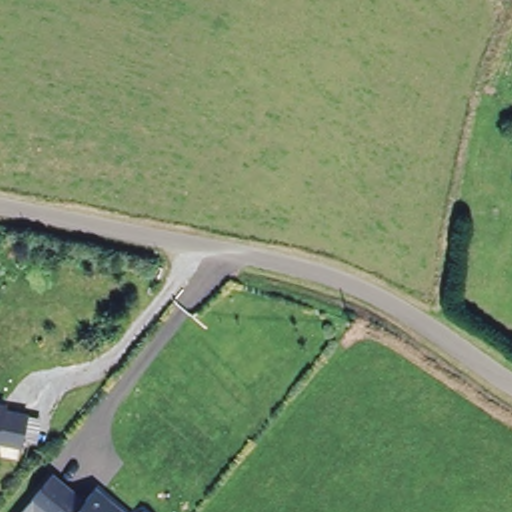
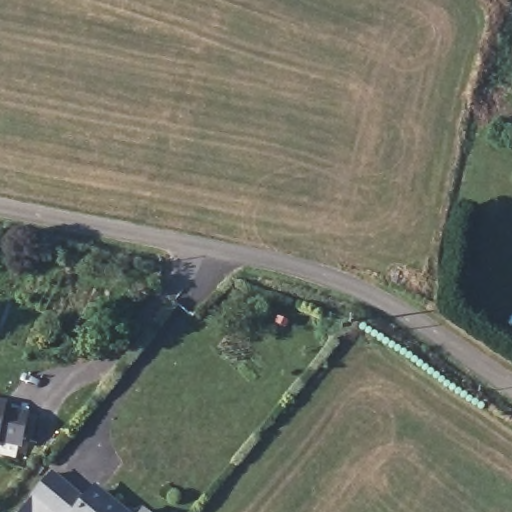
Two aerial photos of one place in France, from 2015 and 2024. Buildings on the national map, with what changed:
unchanged [(30,433),(29,442),(5,437),(4,442),(0,442),(0,399),(14,402),(13,407),(34,412),(34,415),(49,417),(45,436),(30,433)]
unchanged [(36,507),(33,512),(20,512),(35,493),(56,468),(88,495),(95,487),(113,502),(124,501),(136,512),(42,512),(36,507)]
unchanged [(148,505),(156,512),(142,512),(148,505)]

